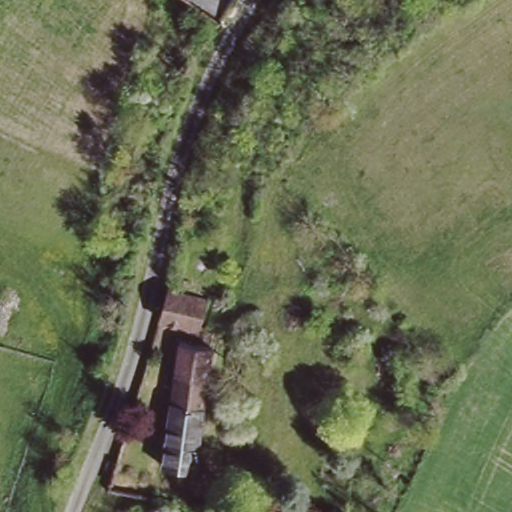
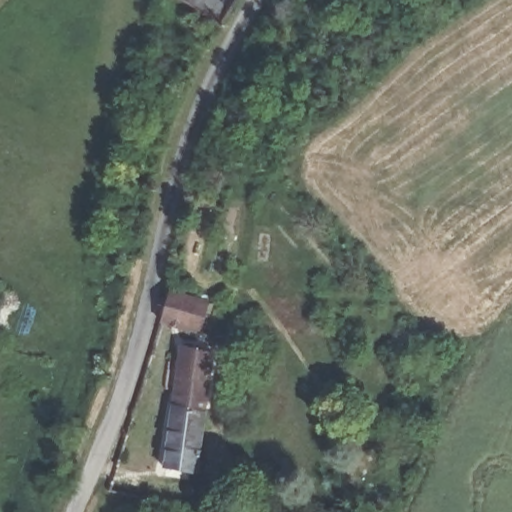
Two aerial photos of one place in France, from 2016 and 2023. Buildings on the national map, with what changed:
unchanged [(184,0),(187,0),(186,1),(184,0)]
unchanged [(219,26),(203,14),(211,0),(214,0),(229,10),(219,26)]
unchanged [(205,298),(197,326),(158,316),(165,287),(205,298)]
unchanged [(174,343),(208,348),(191,471),(157,467),(174,343)]

